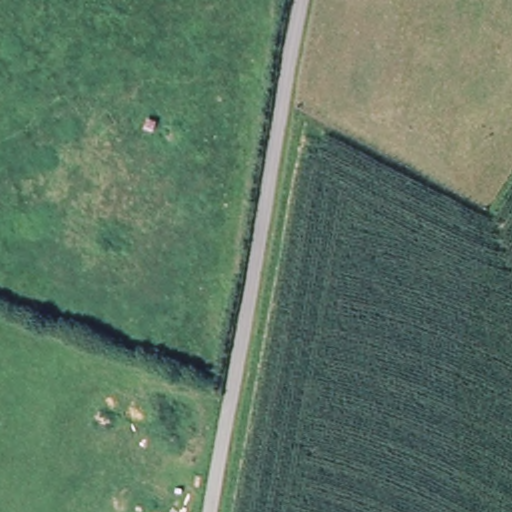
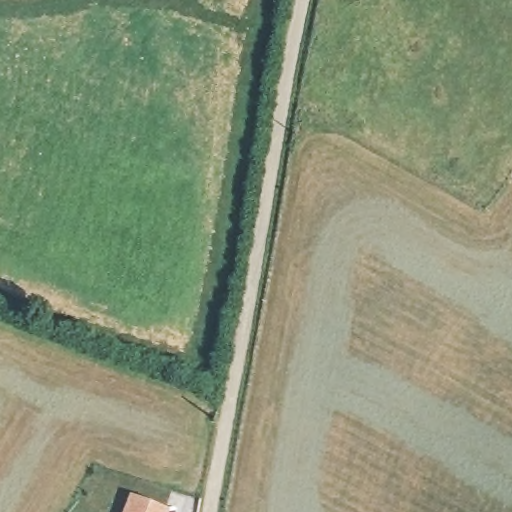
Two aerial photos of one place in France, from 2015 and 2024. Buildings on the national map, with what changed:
new [(121,512),(127,494),(170,510),(169,512),(121,512)]

